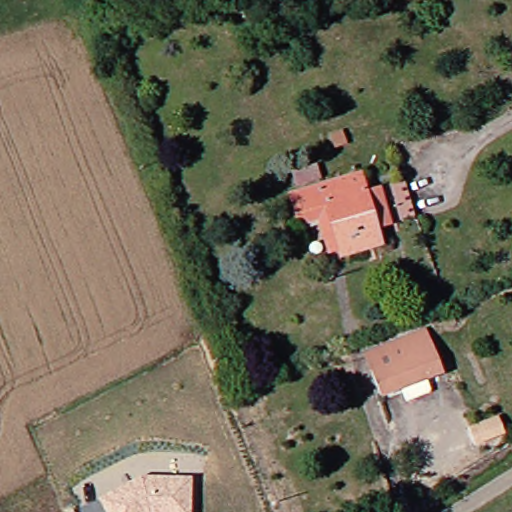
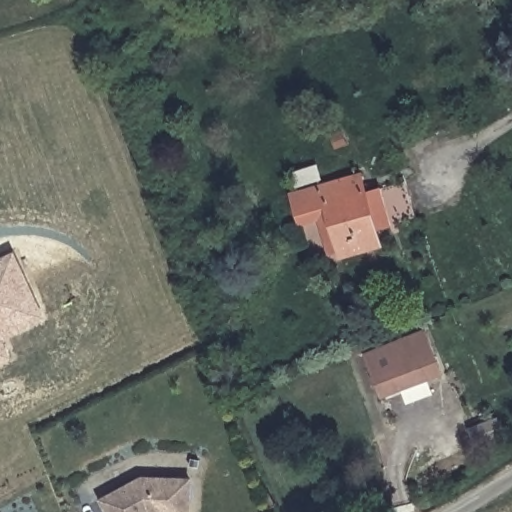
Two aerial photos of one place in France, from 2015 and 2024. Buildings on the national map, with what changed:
unchanged [(341,132),(345,146),(333,150),(329,137),(341,132)]
unchanged [(320,215),(302,222),(298,209),(294,194),(359,174),(380,243),(344,253),(341,245),(330,249),(320,215)]
unchanged [(417,175),(427,207),(395,219),(386,186),(417,175)]
new [(19,332),(1,342),(10,361),(0,365),(0,266),(14,259),(36,305),(44,321),(19,332)]
unchanged [(428,327),(446,373),(388,397),(369,350),(428,327)]
unchanged [(506,437),(501,438),(477,447),(471,429),(494,421),(500,419),(506,437)]
unchanged [(141,476),(192,477),(190,512),(106,512),(98,497),(141,476)]

